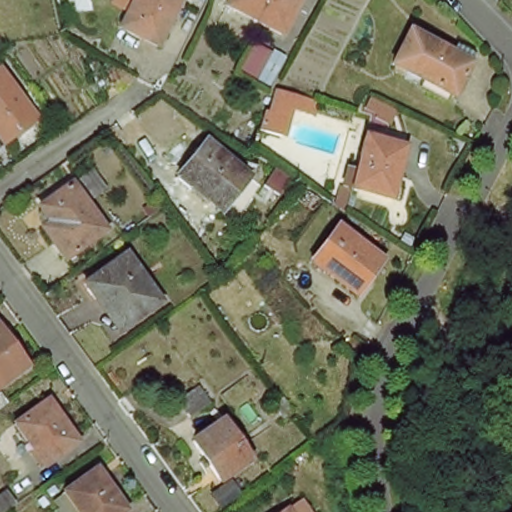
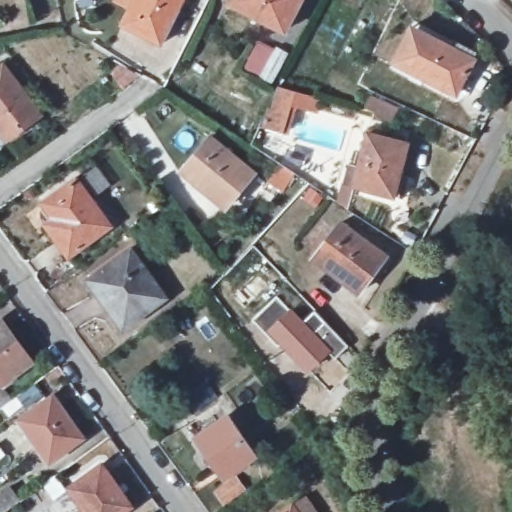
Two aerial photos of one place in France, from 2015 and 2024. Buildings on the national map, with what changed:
unchanged [(163,46),(131,30),(145,0),(185,0),(163,46)]
unchanged [(286,32),(236,8),(239,0),(299,0),(286,32)]
unchanged [(454,89),(409,67),(425,29),(471,50),(454,89)]
unchanged [(36,101),(0,126),(0,64),(6,60),(36,101)]
unchanged [(138,82),(122,94),(111,80),(116,70),(138,82)]
unchanged [(286,87),(329,99),(323,112),(300,104),(290,130),(269,122),(286,87)]
unchanged [(378,126),(398,132),(394,146),(380,142),(381,138),(366,134),(370,124),(378,126)]
unchanged [(228,204),(183,170),(209,136),(256,169),(228,204)]
unchanged [(431,171),(410,207),(364,181),(351,204),(344,200),(343,199),(361,167),(369,171),(382,146),(431,171)]
unchanged [(69,260),(44,226),(55,220),(47,207),(78,186),(110,231),(69,260)]
unchanged [(362,295),(314,262),(340,223),(390,255),(362,295)]
unchanged [(137,330),(115,299),(107,304),(94,284),(138,256),(173,305),(137,330)]
new [(330,392),(310,374),(264,332),(250,318),(277,294),(291,307),(303,318),(314,308),(349,346),(337,357),(351,373),(330,392)]
unchanged [(0,328),(5,325),(33,363),(0,386),(0,328)]
unchanged [(198,421),(187,407),(210,389),(221,404),(198,421)]
unchanged [(53,391),(83,435),(53,457),(23,413),(53,391)]
unchanged [(227,480),(197,437),(228,417),(257,460),(227,480)]
unchanged [(72,512),(65,502),(115,467),(137,497),(118,512),(72,512)]
unchanged [(18,511),(17,512),(0,512),(0,500),(7,495),(18,511)]
unchanged [(297,512),(282,512),(293,505),(297,512)]

